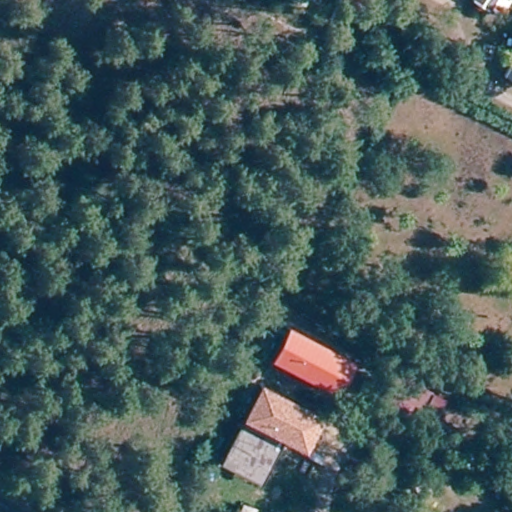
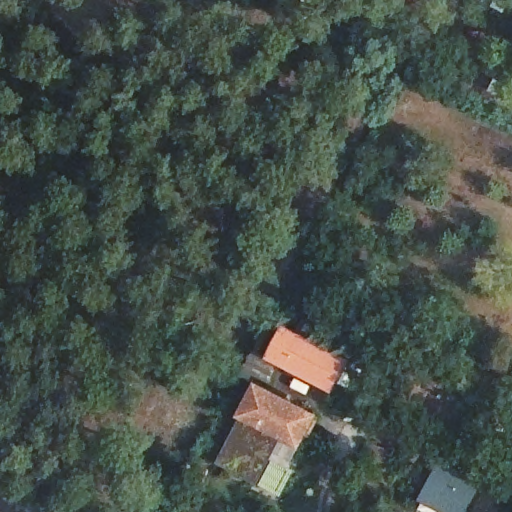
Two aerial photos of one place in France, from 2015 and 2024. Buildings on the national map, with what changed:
unchanged [(298,1),(296,0),(299,0),(298,1)]
unchanged [(327,0),(351,0),(338,23),(320,12),(327,0)]
unchanged [(512,48),(512,80),(497,70),(512,48)]
unchanged [(351,359),(334,391),(266,358),(284,324),(351,359)]
unchanged [(444,398),(434,416),(402,401),(411,380),(444,398)]
unchanged [(320,413),(301,449),(281,438),(258,483),(217,461),(242,415),(238,414),(255,381),(320,413)]
new [(481,484),(466,512),(440,512),(417,499),(437,463),(481,484)]

